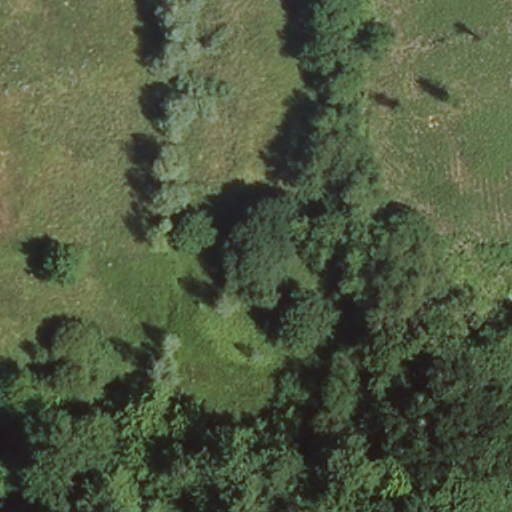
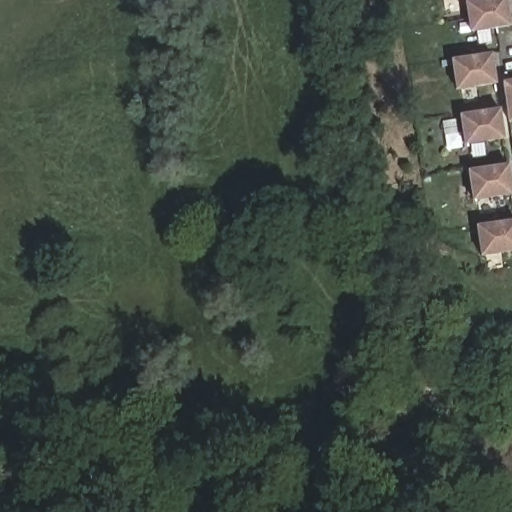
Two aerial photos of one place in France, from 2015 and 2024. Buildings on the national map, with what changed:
new [(468,0),(506,0),(510,27),(469,33),(464,1),(468,0)]
new [(449,60),(491,53),(495,85),(454,91),(449,60)]
new [(502,82),(512,80),(512,122),(508,122),(502,82)]
new [(457,115),(499,109),(504,141),(462,146),(457,115)]
new [(466,170),(507,164),(512,196),(470,201),(466,170)]
new [(512,252),(479,257),(474,226),(512,220),(512,252)]

